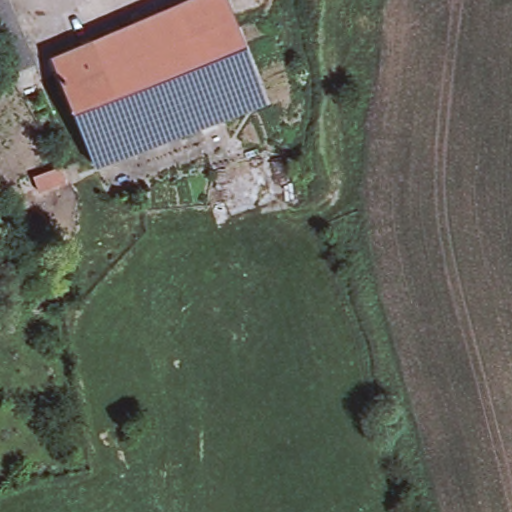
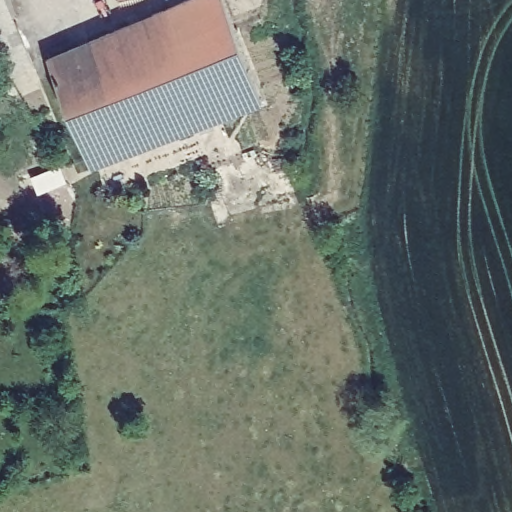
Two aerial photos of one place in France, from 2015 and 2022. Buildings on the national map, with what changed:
unchanged [(9,74),(8,75),(3,65),(0,56),(0,0),(6,0),(31,66),(9,74)]
unchanged [(194,0),(225,0),(264,102),(95,167),(50,61),(194,0)]

